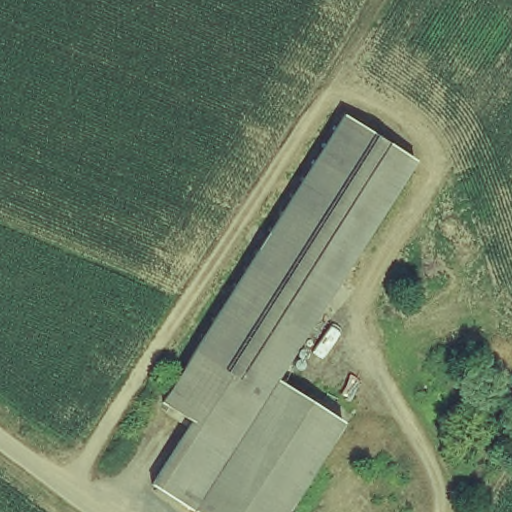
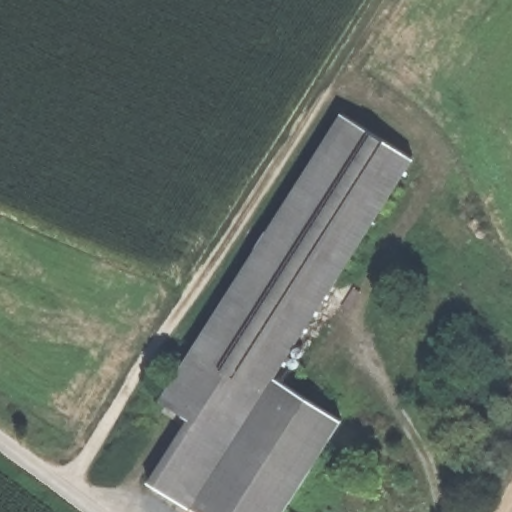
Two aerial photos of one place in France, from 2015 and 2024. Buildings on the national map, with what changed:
unchanged [(190,421),(162,403),(344,114),(415,159),(275,379),(313,403),(342,422),(285,512),(193,512),(150,484),(190,421)]

